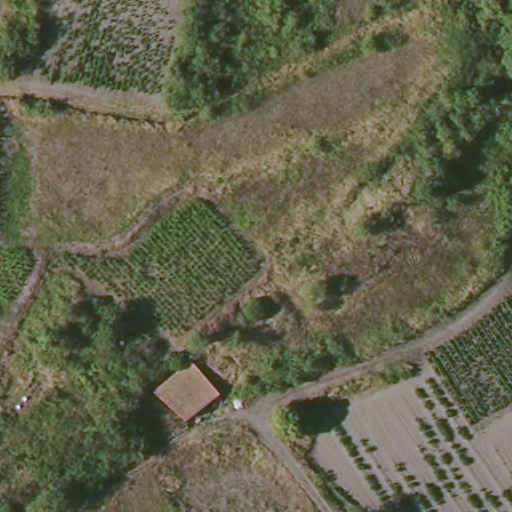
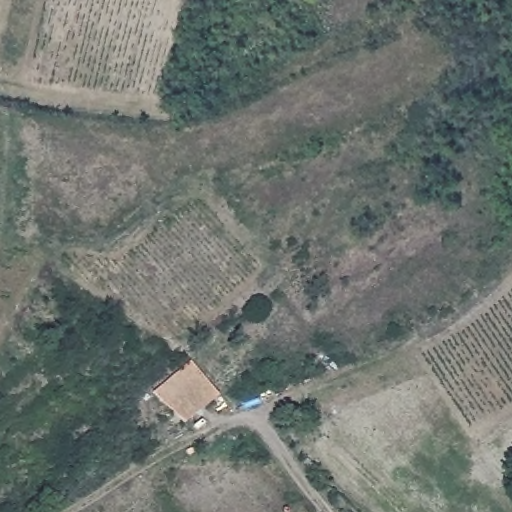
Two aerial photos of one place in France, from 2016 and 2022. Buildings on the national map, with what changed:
unchanged [(186,419),(151,396),(193,362),(222,392),(186,419)]

